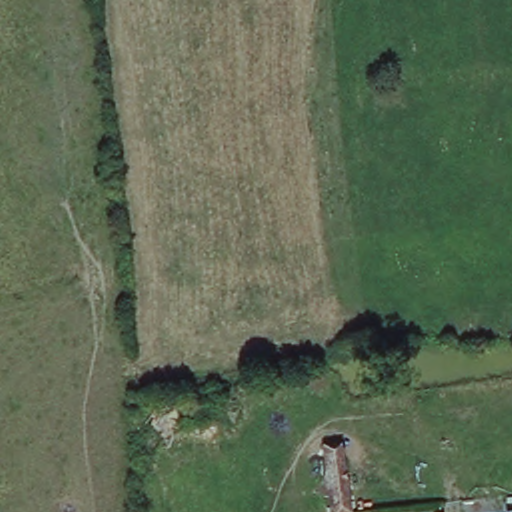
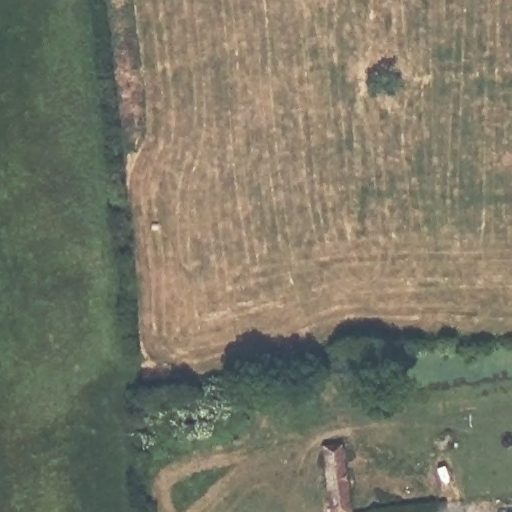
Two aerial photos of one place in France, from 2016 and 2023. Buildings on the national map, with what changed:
unchanged [(236,420),(147,428),(144,405),(233,396),(236,420)]
unchanged [(329,512),(323,451),(345,450),(350,512),(329,512)]

